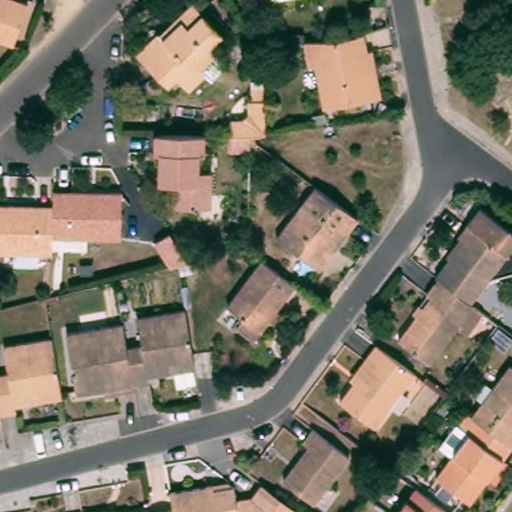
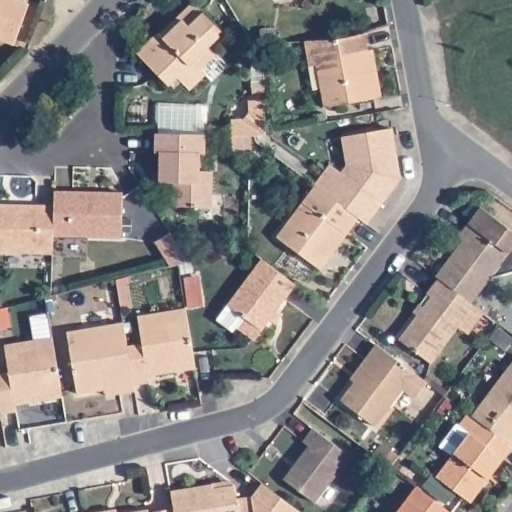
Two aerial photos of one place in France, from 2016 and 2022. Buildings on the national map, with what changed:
unchanged [(1,0),(15,0),(29,6),(16,43),(0,37),(0,0),(0,1),(1,0)]
unchanged [(152,30),(159,36),(171,24),(167,20),(186,1),(217,30),(204,43),(210,50),(195,65),(200,71),(175,95),(131,51),(152,30)]
unchanged [(370,50),(375,78),(379,98),(321,108),(314,64),(306,66),(303,41),(313,40),(337,39),(358,35),(360,34),(363,52),(370,50)]
unchanged [(235,146),(236,129),(236,115),(248,115),(255,106),(255,90),(270,90),(270,123),(260,125),(255,126),(255,130),(254,146),(235,146)]
new [(360,218),(318,185),(315,183),(330,163),(340,172),(347,164),(343,135),(392,127),(400,176),(368,223),(360,218)]
unchanged [(198,152),(193,152),(192,171),(205,172),(204,208),(164,205),(165,183),(151,183),(153,151),(149,151),(150,132),(200,133),(198,152)]
unchanged [(360,218),(346,237),(341,234),(330,250),(334,253),(320,272),(276,240),(316,186),(360,218)]
unchanged [(120,191),(120,235),(52,233),(53,204),(54,190),(120,191)]
unchanged [(0,249),(0,203),(53,204),(52,233),(51,251),(0,249)]
unchanged [(437,278),(465,242),(458,238),(481,208),(512,231),(512,273),(490,280),(472,304),(440,280),(437,278)]
unchanged [(178,265),(168,268),(154,244),(169,236),(186,264),(178,265)]
unchanged [(295,285),(251,342),(234,329),(242,318),(226,305),(262,259),(295,285)]
unchanged [(468,336),(458,328),(431,365),(398,341),(431,298),(427,295),(440,280),(472,304),(485,314),(468,336)]
unchanged [(125,347),(140,344),(136,318),(185,310),(195,369),(147,376),(147,382),(131,385),(125,347)]
unchanged [(102,389),(75,393),(65,333),(121,323),(125,347),(131,385),(132,391),(116,394),(104,396),(102,389)]
unchanged [(0,374),(11,372),(7,345),(54,337),(64,396),(25,402),(25,398),(15,400),(18,412),(1,414),(0,405),(0,374)]
unchanged [(375,429),(340,403),(355,383),(350,379),(364,360),(375,345),(415,375),(375,429)]
unchanged [(479,421),(471,415),(510,363),(512,364),(512,446),(479,421)]
unchanged [(2,418),(0,418),(0,405),(1,414),(2,418)]
unchanged [(512,446),(512,447),(470,502),(436,476),(479,421),(512,446)]
unchanged [(308,448),(301,443),(312,430),(349,458),(313,504),(282,482),(308,448)]
unchanged [(214,485),(230,483),(231,488),(236,487),(237,501),(253,499),(255,512),(175,512),(175,508),(172,492),(214,485)]
unchanged [(449,512),(395,512),(415,486),(449,512)]
unchanged [(152,512),(175,508),(175,512),(132,512),(152,509),(152,512)]
unchanged [(117,512),(102,512),(110,511),(116,510),(117,512)]

